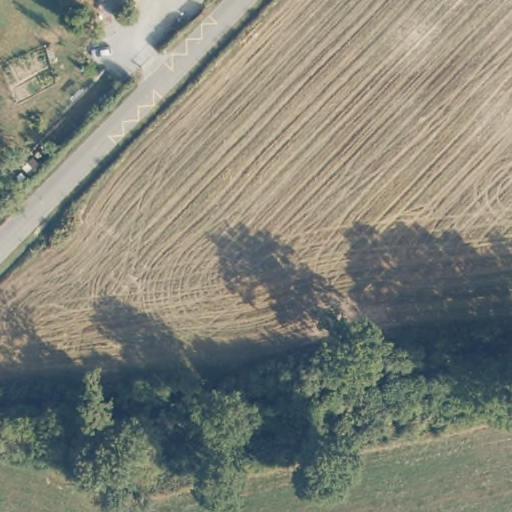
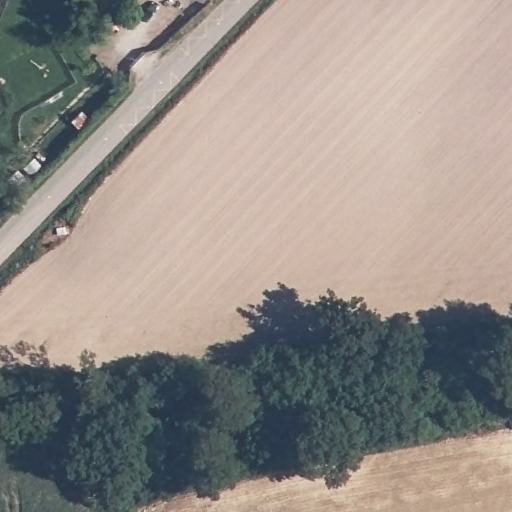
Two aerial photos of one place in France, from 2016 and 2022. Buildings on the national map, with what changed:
[]

